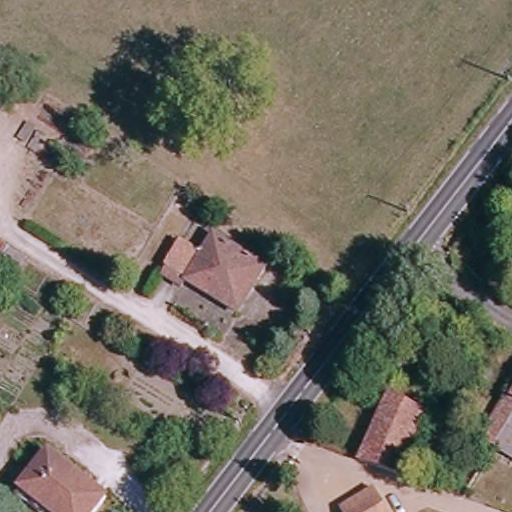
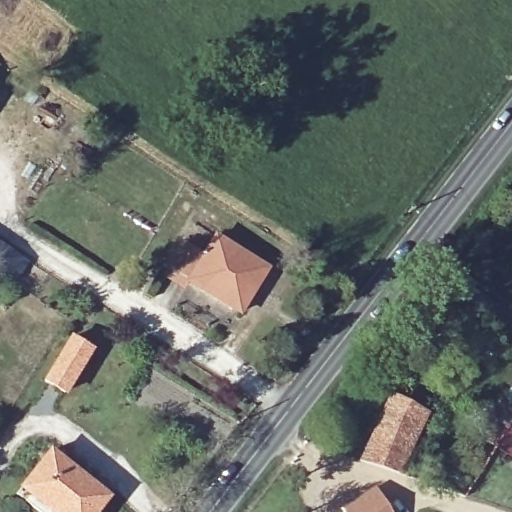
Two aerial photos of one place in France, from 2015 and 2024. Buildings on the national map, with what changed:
unchanged [(239,313),(168,269),(186,242),(204,254),(213,236),(265,269),(239,313)]
unchanged [(11,282),(0,275),(0,245),(28,262),(11,282)]
new [(69,340),(88,351),(62,394),(43,382),(69,340)]
unchanged [(494,452),(478,443),(512,387),(512,425),(494,452)]
unchanged [(387,391),(426,412),(400,475),(360,461),(387,391)]
unchanged [(494,452),(512,425),(512,461),(494,452)]
unchanged [(96,512),(50,512),(22,490),(55,448),(110,495),(96,512)]
unchanged [(371,490),(385,512),(340,512),(340,511),(371,490)]

